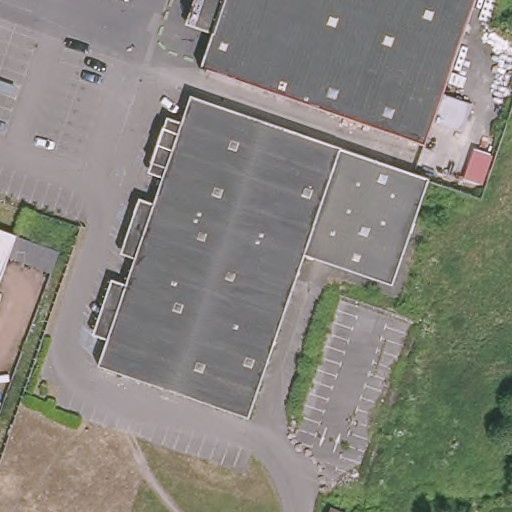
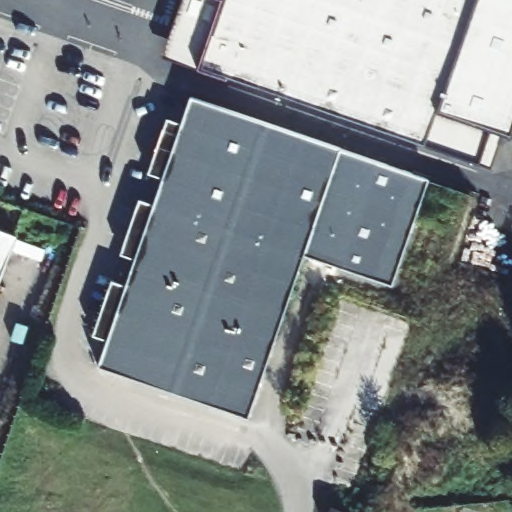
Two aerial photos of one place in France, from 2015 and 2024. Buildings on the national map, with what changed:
unchanged [(477,0),(428,139),(205,61),(217,24),(191,15),(197,0),(477,0)]
new [(512,0),(512,137),(503,134),(492,160),(428,139),(477,0),(512,0)]
new [(163,16),(193,26),(181,59),(152,49),(163,16)]
unchanged [(192,98),(193,94),(342,146),(431,177),(430,181),(394,284),(306,254),(250,417),(101,364),(192,98)]
unchanged [(21,230),(1,284),(0,286),(0,223),(21,230)]
unchanged [(327,509),(338,512),(326,512),(327,509)]

